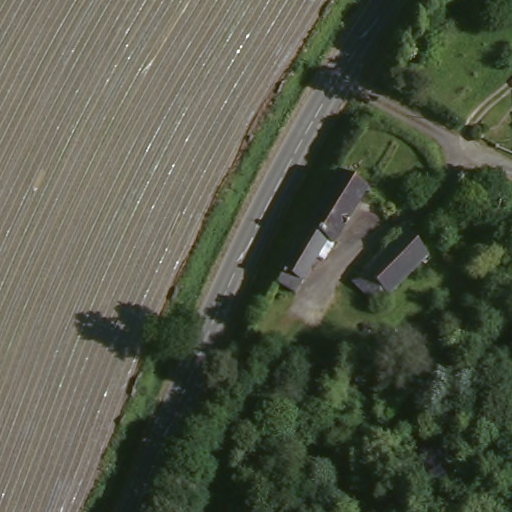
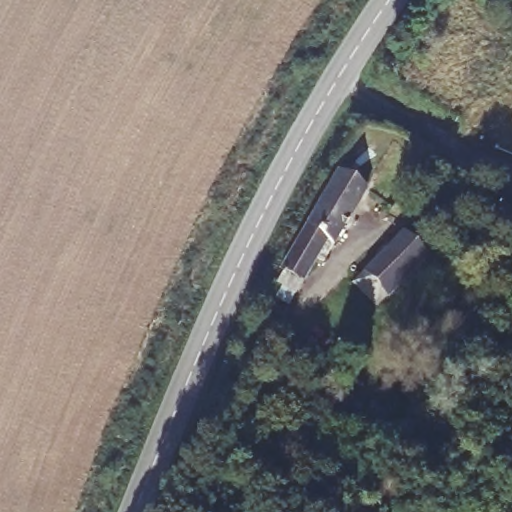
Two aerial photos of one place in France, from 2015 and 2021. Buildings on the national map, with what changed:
unchanged [(337,178),(365,195),(325,269),(315,264),(295,301),(275,290),(337,178)]
unchanged [(350,289),(362,277),(403,238),(410,246),(423,261),(384,299),(372,310),(350,289)]
unchanged [(282,359),(331,372),(322,391),(278,378),(282,359)]

